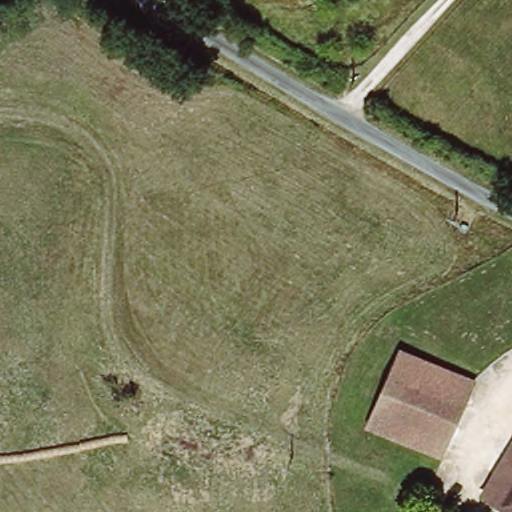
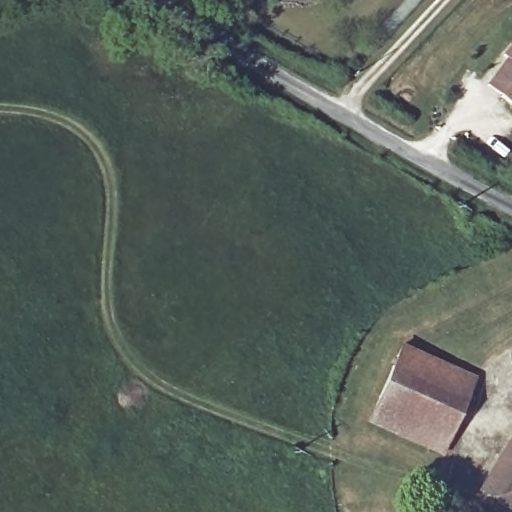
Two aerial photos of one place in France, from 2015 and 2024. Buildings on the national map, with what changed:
new [(485,83),(504,58),(501,54),(512,39),(512,104),(485,83)]
unchanged [(473,377),(441,452),(368,418),(403,345),(473,377)]
unchanged [(480,494),(512,443),(512,512),(480,494)]

